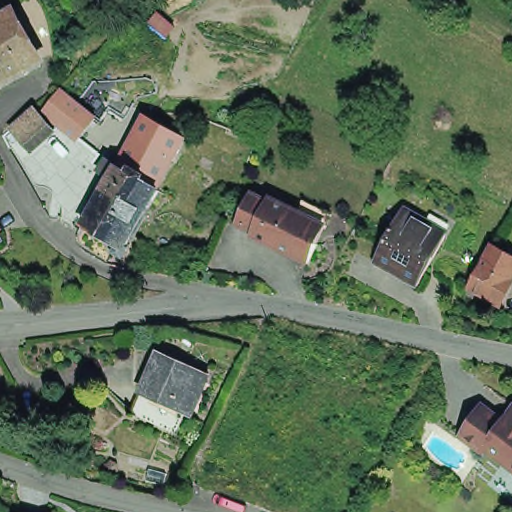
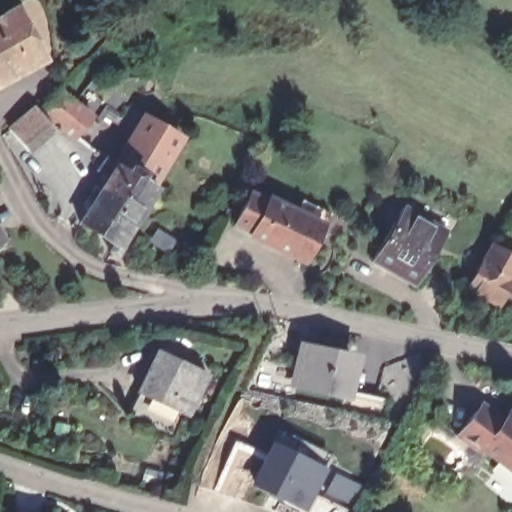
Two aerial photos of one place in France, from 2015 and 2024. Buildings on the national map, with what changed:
unchanged [(0,23),(18,13),(43,58),(0,81),(0,23)]
unchanged [(58,91),(93,118),(76,139),(42,111),(58,91)]
unchanged [(10,128),(22,117),(34,107),(53,129),(42,139),(29,150),(10,128)]
unchanged [(123,252),(124,253),(120,260),(112,256),(117,249),(82,228),(83,224),(108,182),(97,176),(105,164),(115,170),(136,137),(144,124),(180,144),(172,158),(152,193),(157,196),(123,252)]
unchanged [(310,269),(253,241),(255,238),(238,230),(255,197),(272,206),(273,203),(300,217),(306,206),(334,220),(329,230),(319,250),(310,269)]
unchanged [(414,290),(389,276),(370,265),(401,211),(445,235),(416,286),(414,290)]
unchanged [(492,245),(512,258),(512,274),(496,302),(467,286),(492,245)]
new [(363,355),(353,404),(288,389),(299,343),(363,355)]
unchanged [(145,386),(160,353),(198,371),(201,366),(210,371),(192,409),(186,406),(145,386)]
unchanged [(176,427),(135,407),(145,386),(186,406),(176,427)]
unchanged [(502,468),(480,452),(477,456),(453,438),(470,415),(493,432),(510,410),(512,412),(512,477),(502,468)]
demolished [(455,471),(435,460),(421,444),(430,433),(440,437),(452,445),(465,458),(455,471)]
new [(327,471),(308,512),(300,512),(249,489),(270,443),(327,471)]
new [(363,488),(355,509),(323,494),(334,474),(363,488)]

